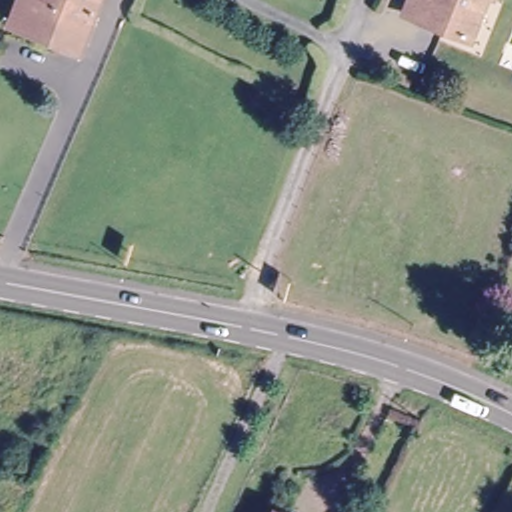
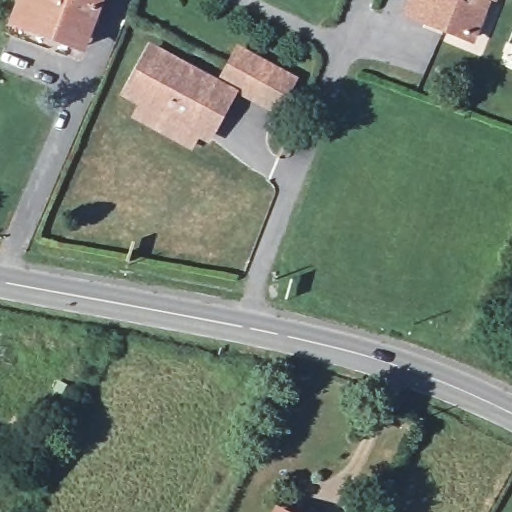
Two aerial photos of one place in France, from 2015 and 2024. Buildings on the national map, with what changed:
unchanged [(102,0),(84,49),(13,23),(21,0),(102,0)]
unchanged [(405,0),(478,0),(463,38),(441,30),(417,20),(400,13),(405,0)]
new [(133,95),(156,51),(227,90),(238,96),(214,140),(203,134),(195,146),(144,118),(151,105),(133,95)]
new [(282,111),(264,102),(229,83),(245,54),(280,73),(297,83),(282,111)]

